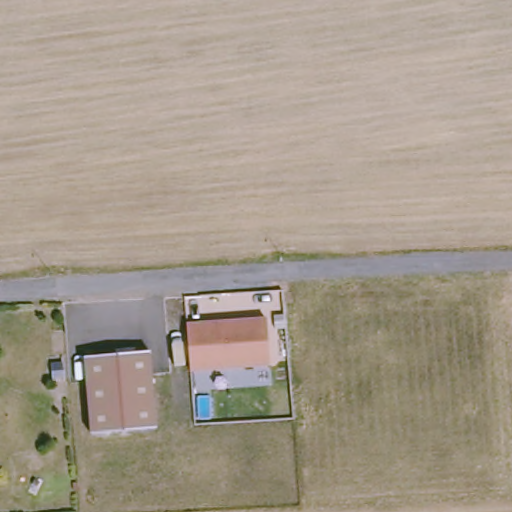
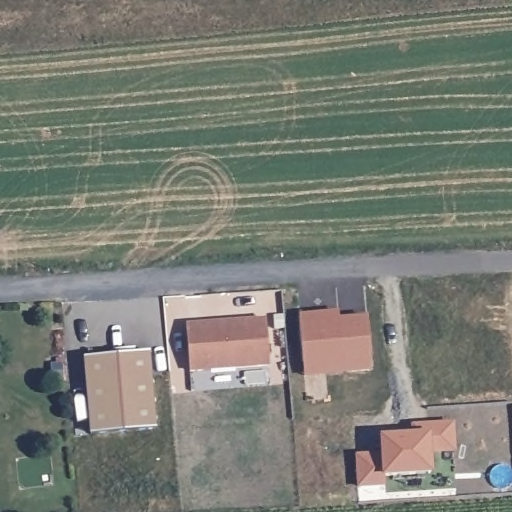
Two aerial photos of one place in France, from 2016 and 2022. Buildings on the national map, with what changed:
new [(307,377),(300,316),(340,312),(340,320),(367,317),(372,372),(307,377)]
unchanged [(222,322),(222,327),(230,326),(229,322),(265,318),(268,365),(189,371),(185,325),(222,322)]
unchanged [(93,433),(87,361),(153,356),(159,428),(93,433)]
new [(382,432),(415,429),(414,420),(428,418),(454,416),(456,443),(432,445),(432,466),(387,470),(387,478),(361,481),(358,451),(383,448),(382,432)]

